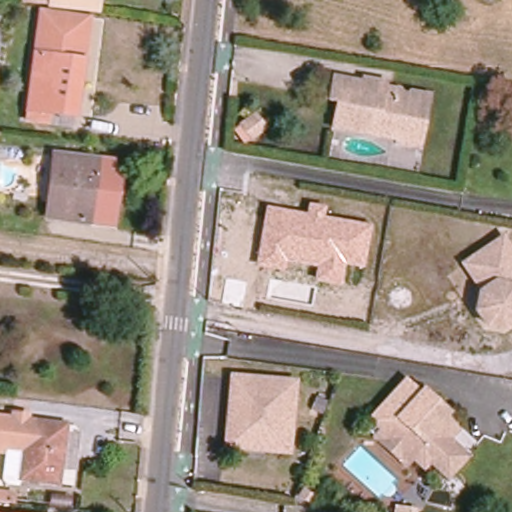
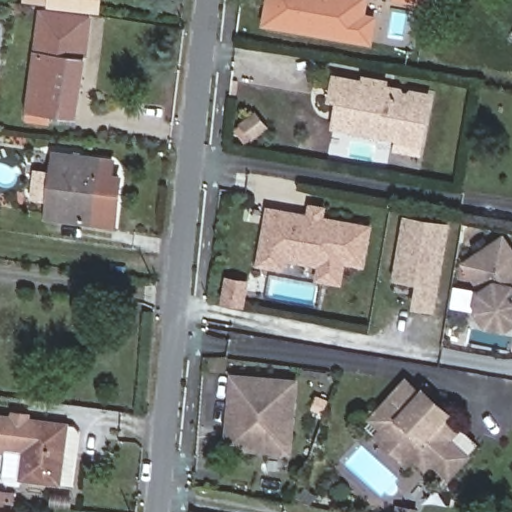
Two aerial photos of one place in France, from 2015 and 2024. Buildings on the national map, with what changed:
unchanged [(25,2),(25,0),(99,0),(98,10),(25,2)]
new [(379,15),(373,45),(262,24),(266,0),(369,0),(367,13),(379,15)]
unchanged [(41,9),(90,17),(77,116),(49,112),(47,122),(27,119),(41,9)]
unchanged [(400,133),(399,139),(335,127),(340,100),(332,98),(336,76),(365,82),(365,77),(388,81),(386,92),(429,100),(422,138),(400,133)]
unchanged [(261,132),(247,142),(237,129),(250,118),(261,132)]
unchanged [(100,159),(93,223),(47,217),(55,153),(100,159)]
new [(116,160),(116,173),(123,174),(117,225),(93,223),(100,159),(116,160)]
unchanged [(256,265),(267,206),(306,213),(308,203),(326,206),(324,215),(371,225),(364,268),(344,265),(340,285),(315,280),(317,266),(286,261),(284,270),(256,265)]
new [(412,308),(416,283),(392,279),(403,215),(450,223),(435,311),(412,308)]
unchanged [(512,324),(505,328),(488,324),(478,309),(482,292),(484,290),(466,263),(504,238),(512,250),(512,324)]
new [(225,279),(245,283),(244,292),(241,308),(220,304),(225,279)]
unchanged [(460,423),(451,434),(468,450),(449,472),(431,456),(426,462),(384,424),(389,419),(378,409),(407,376),(460,423)]
unchanged [(301,396),(296,451),(249,447),(250,437),(230,435),(234,391),(301,396)]
unchanged [(8,483),(2,475),(6,450),(4,450),(0,450),(0,415),(16,417),(16,412),(29,414),(28,418),(67,423),(80,425),(72,485),(60,483),(20,478),(19,485),(8,483)]
unchanged [(1,490),(0,495),(0,490),(1,490)]

